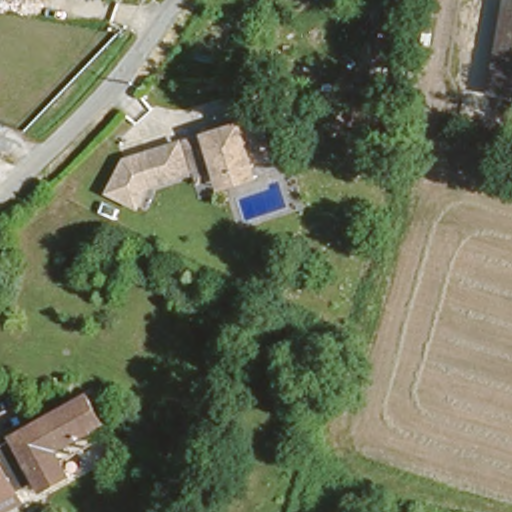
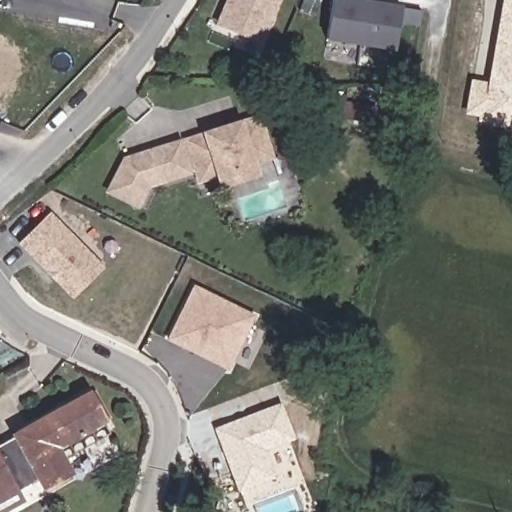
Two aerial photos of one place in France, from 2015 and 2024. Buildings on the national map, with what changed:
new [(282,0),(262,47),(215,24),(226,0),(282,0)]
new [(349,0),(401,10),(394,53),(325,42),(333,0),(349,0)]
unchanged [(512,0),(512,92),(487,87),(504,0),(512,0)]
demolished [(362,60),(375,62),(382,36),(393,38),(391,47),(402,50),(398,67),(388,65),(385,77),(358,72),(362,60)]
new [(478,117),(465,115),(472,80),(488,83),(487,87),(512,92),(512,127),(478,122),(478,117)]
unchanged [(216,167),(201,172),(197,160),(190,162),(191,165),(155,177),(154,174),(147,176),(147,177),(150,178),(140,197),(112,184),(127,152),(181,135),(182,137),(190,135),(189,132),(261,109),(270,136),(274,148),(255,154),(257,164),(220,177),(216,167)]
new [(106,270),(73,302),(17,245),(50,214),(106,270)]
new [(258,318),(230,373),(168,342),(195,286),(258,318)]
unchanged [(40,481),(36,472),(14,483),(18,492),(0,502),(0,434),(62,402),(61,400),(74,393),(75,396),(89,389),(102,416),(109,428),(60,453),(67,467),(40,481)]
new [(214,431),(282,404),(297,445),(267,455),(277,482),(239,494),(214,431)]

